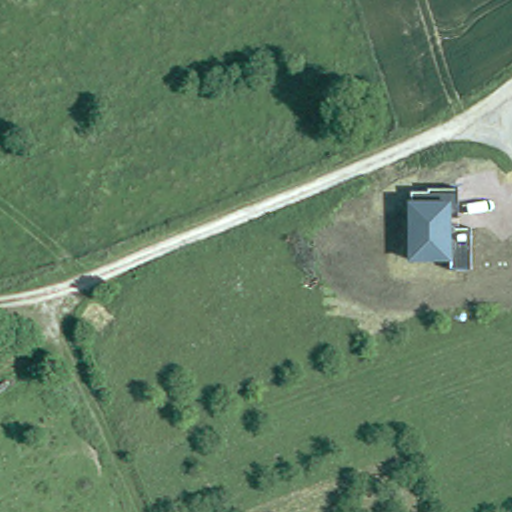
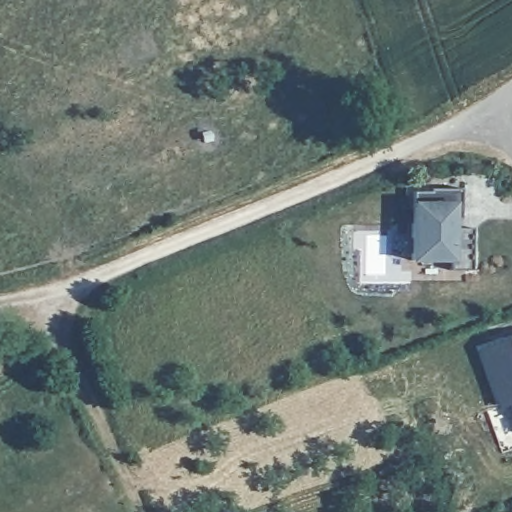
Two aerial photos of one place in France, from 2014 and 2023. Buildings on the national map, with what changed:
unchanged [(458,229),(470,230),(470,270),(452,270),(451,261),(410,262),(410,201),(413,193),(430,194),(429,189),(459,189),(458,229)]
new [(512,340),(512,405),(511,402),(502,406),(483,350),(512,340)]

